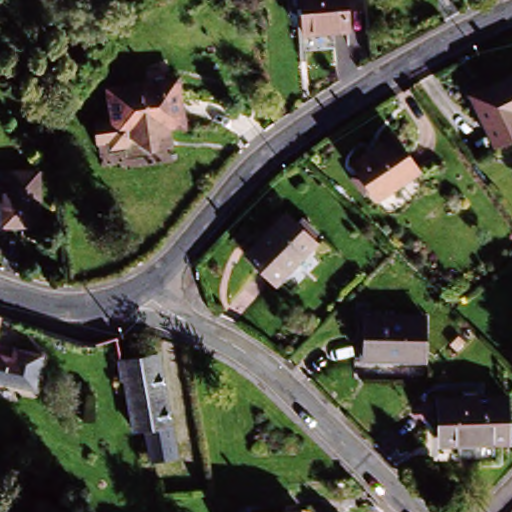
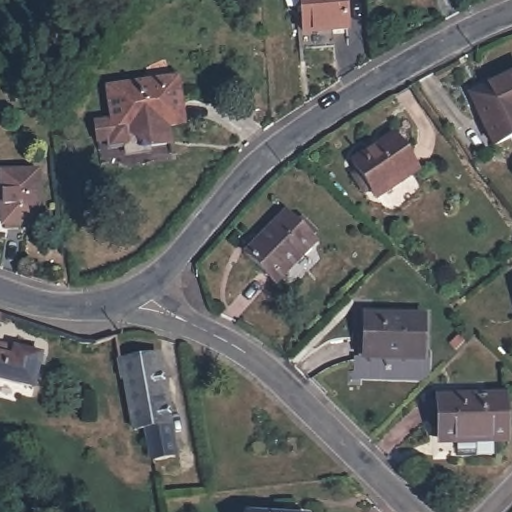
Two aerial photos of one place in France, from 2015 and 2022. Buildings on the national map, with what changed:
unchanged [(348,35),(308,36),(306,0),(346,0),(348,35)]
unchanged [(128,153),(126,143),(113,144),(111,136),(100,138),(98,119),(114,116),(115,116),(110,84),(161,77),(181,74),(188,120),(171,123),(173,141),(166,142),(153,144),(154,149),(128,153)]
unchanged [(512,76),(512,141),(493,151),(467,98),(512,76)]
unchanged [(356,166),(397,137),(421,172),(381,200),(356,166)]
unchanged [(37,183),(42,232),(7,236),(0,187),(37,183)]
unchanged [(314,245),(273,286),(243,256),(284,215),(314,245)]
unchanged [(418,325),(417,367),(358,365),(359,324),(418,325)]
unchanged [(133,380),(128,381),(120,337),(123,335),(124,337),(128,359),(164,353),(181,458),(159,462),(158,458),(153,429),(140,431),(139,429),(133,380)]
unchanged [(7,349),(36,356),(28,390),(0,383),(0,348),(6,350),(7,349)]
unchanged [(501,398),(502,439),(433,441),(432,399),(501,398)]

